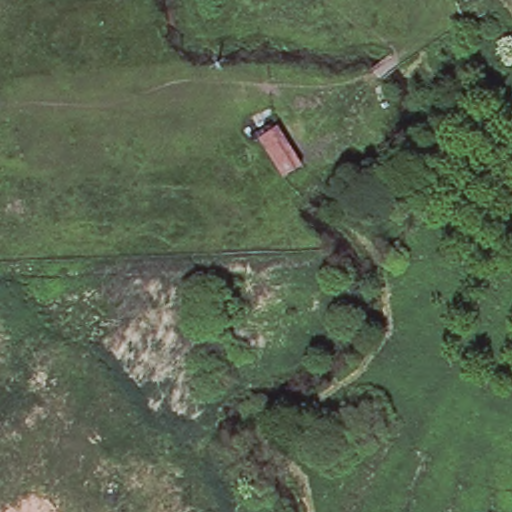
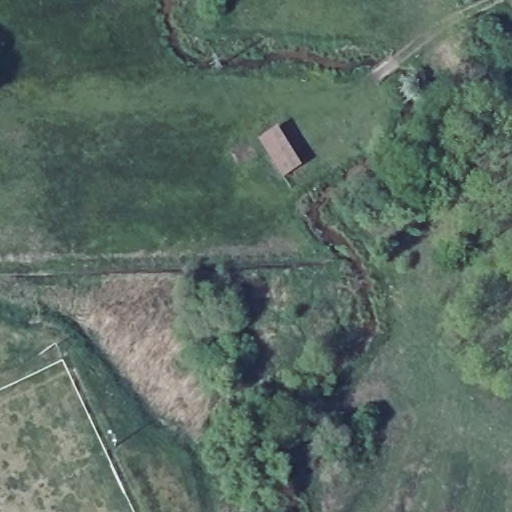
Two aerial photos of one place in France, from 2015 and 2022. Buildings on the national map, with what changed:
unchanged [(277,128),(302,169),(282,181),(257,140),(277,128)]

